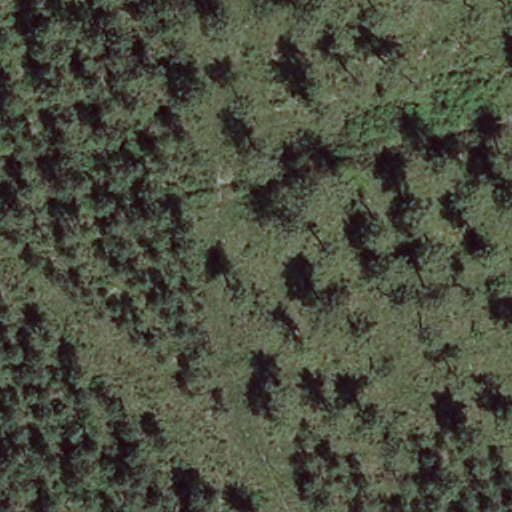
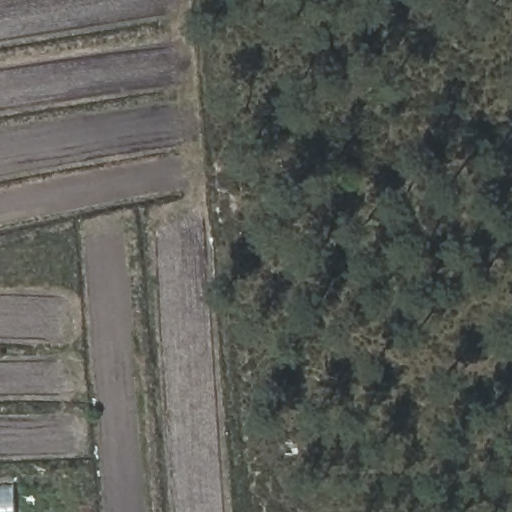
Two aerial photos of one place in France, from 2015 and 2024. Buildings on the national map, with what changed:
new [(0,487),(15,487),(16,512),(0,512),(0,487)]

